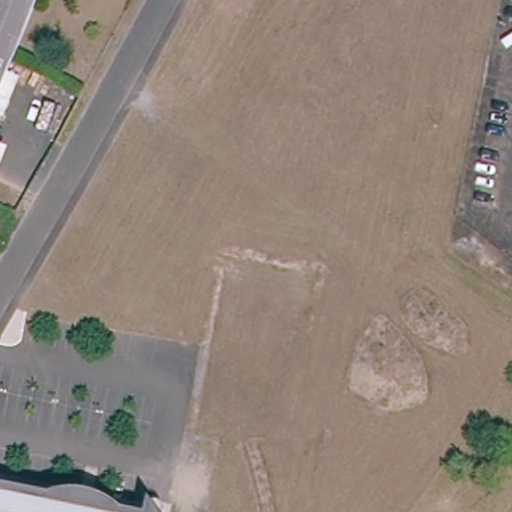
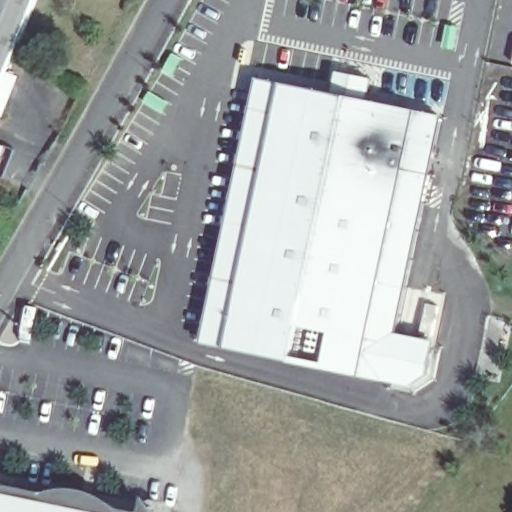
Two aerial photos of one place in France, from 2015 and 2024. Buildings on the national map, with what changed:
unchanged [(34,0),(12,54),(0,86),(0,0),(34,0)]
new [(398,333),(437,341),(431,376),(412,385),(363,374),(231,348),(205,343),(258,79),(283,84),(336,94),(339,73),(372,78),(370,101),(443,116),(398,333)]
unchanged [(9,147),(0,172),(0,143),(9,147)]
unchanged [(49,497),(55,495),(64,495),(72,495),(81,496),(90,498),(97,501),(105,505),(111,510),(111,512),(0,512),(0,494),(47,504),(49,497)]

